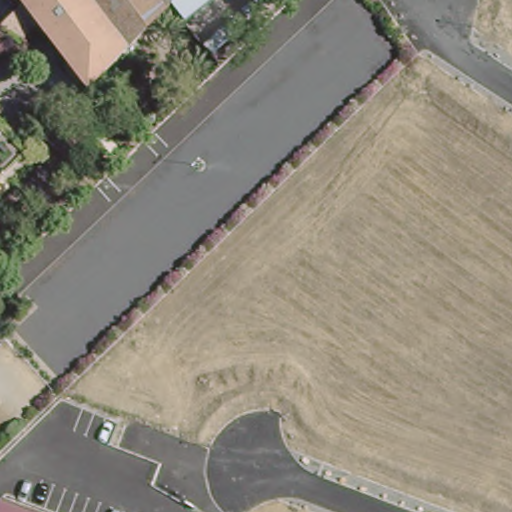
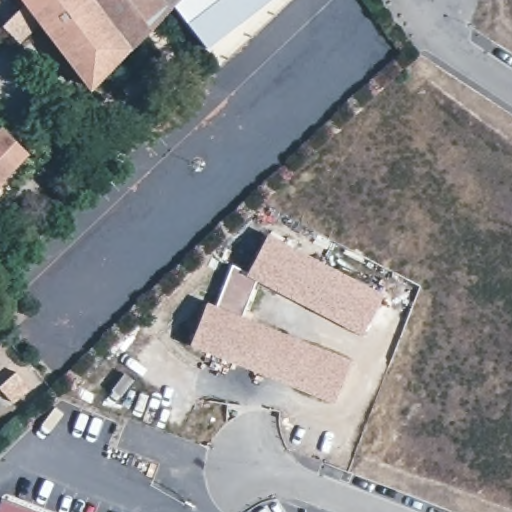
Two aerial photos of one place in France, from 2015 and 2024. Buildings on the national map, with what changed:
unchanged [(3,26),(27,3),(25,0),(244,0),(252,11),(205,51),(171,6),(90,89),(42,23),(20,44),(3,26)]
new [(266,0),(252,11),(244,0),(266,0)]
unchanged [(0,177),(0,129),(24,153),(0,177)]
unchanged [(0,195),(0,181),(7,188),(0,195)]
new [(254,278),(255,276),(247,272),(267,235),(382,294),(361,335),(254,278)]
new [(231,263),(255,276),(239,317),(212,307),(231,263)]
new [(205,304),(212,307),(239,317),(347,359),(331,399),(190,344),(205,304)]
unchanged [(44,512),(0,512),(0,504),(3,496),(44,512)]

